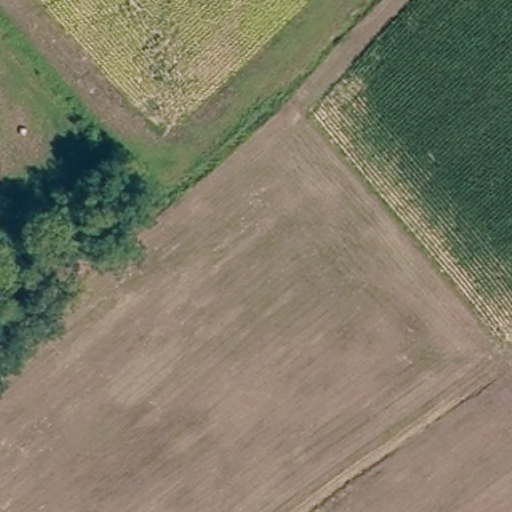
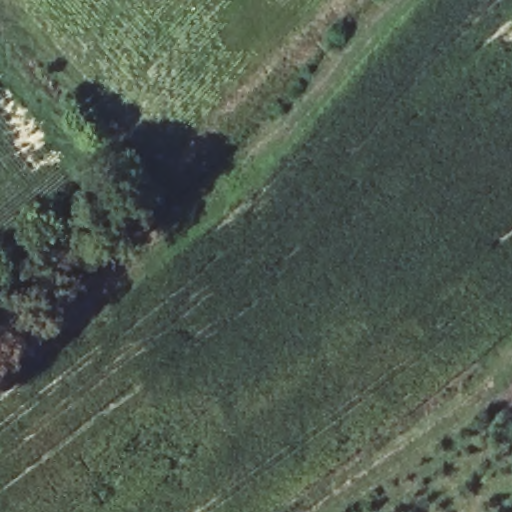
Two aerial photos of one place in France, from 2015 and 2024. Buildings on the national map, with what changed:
[]

